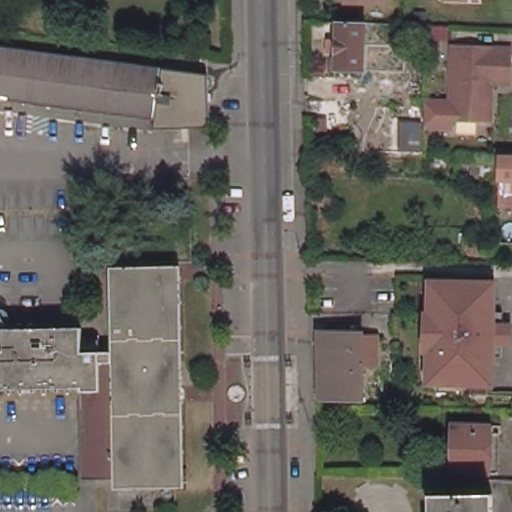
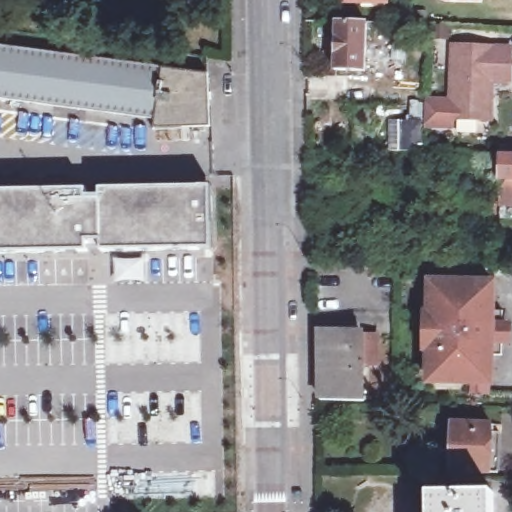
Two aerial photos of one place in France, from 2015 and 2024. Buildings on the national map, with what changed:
unchanged [(391,10),(351,10),(351,0),(391,0),(391,10)]
unchanged [(446,0),(479,0),(479,2),(462,2),(446,1),(446,0)]
unchanged [(369,40),(376,40),(375,49),(369,49),(368,69),(339,67),(341,21),(369,22),(369,40)]
unchanged [(422,121),(423,99),(431,99),(456,100),(458,44),(512,45),(512,79),(497,79),(497,91),(496,116),(456,115),(456,123),(430,122),(422,121)]
unchanged [(212,72),(214,125),(156,130),(158,120),(0,100),(0,45),(212,72)]
unchanged [(504,204),(504,181),(504,175),(486,174),(487,159),(504,160),(512,160),(512,207),(504,207),(504,204)]
new [(88,191),(88,202),(103,201),(102,191),(211,189),(213,253),(103,255),(103,244),(88,245),(88,255),(0,257),(0,193),(88,191)]
demolished [(115,277),(175,278),(176,473),(116,472),(115,367),(115,350),(115,277)]
unchanged [(511,340),(505,340),(504,354),(495,354),(494,382),(462,381),(462,375),(431,372),(432,336),(433,322),(434,286),(464,286),(465,281),(498,282),(497,309),(507,310),(506,326),(511,326),(511,340)]
demolished [(81,350),(99,350),(100,367),(100,385),(81,385),(0,387),(0,328),(81,326),(81,335),(81,350)]
unchanged [(363,336),(384,335),(383,368),(366,370),(366,400),(317,400),(311,330),(366,328),(363,336)]
demolished [(100,385),(100,367),(115,367),(116,472),(81,472),(81,385),(100,385)]
unchanged [(497,471),(450,469),(452,421),(491,422),(491,430),(498,430),(497,471)]
unchanged [(503,497),(503,512),(439,512),(439,498),(503,497)]

